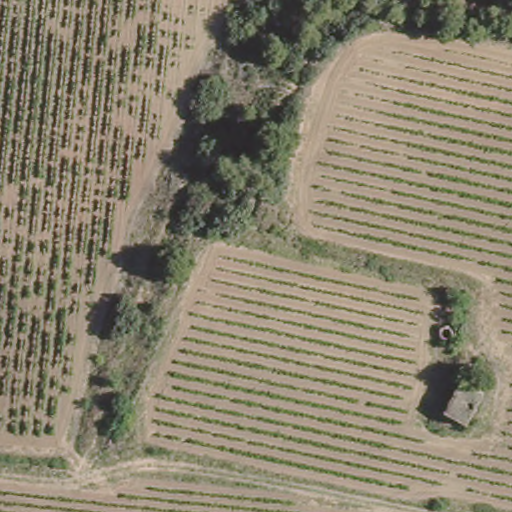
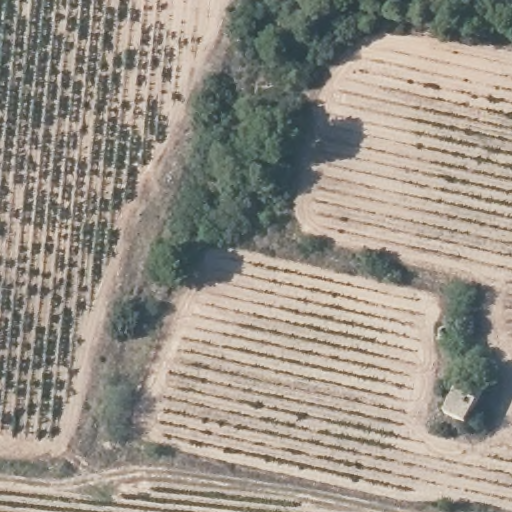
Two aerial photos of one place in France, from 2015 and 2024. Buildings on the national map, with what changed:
unchanged [(447,419),(462,386),(479,393),(463,426),(447,419)]

